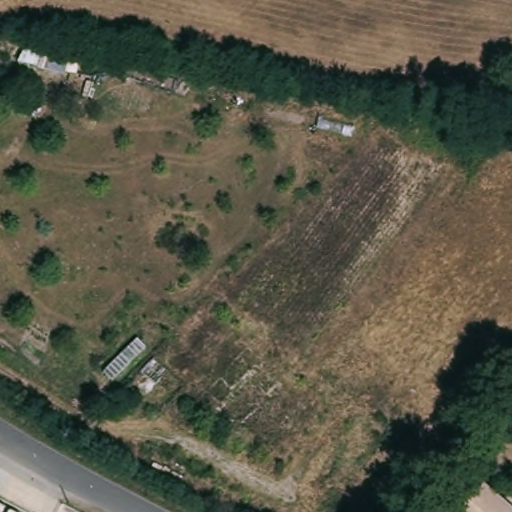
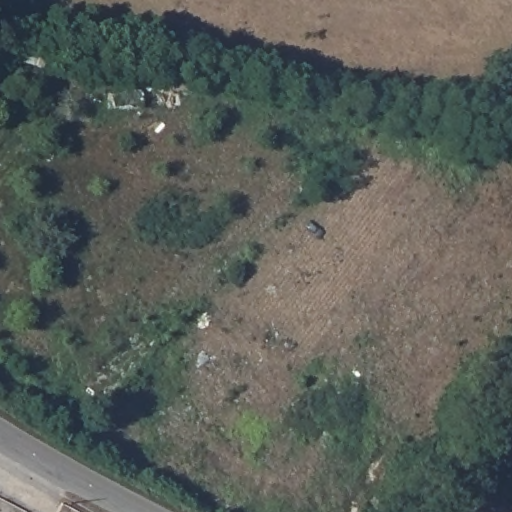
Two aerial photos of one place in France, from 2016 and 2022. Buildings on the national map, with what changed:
unchanged [(512,509),(512,512),(453,512),(474,481),(512,509)]

